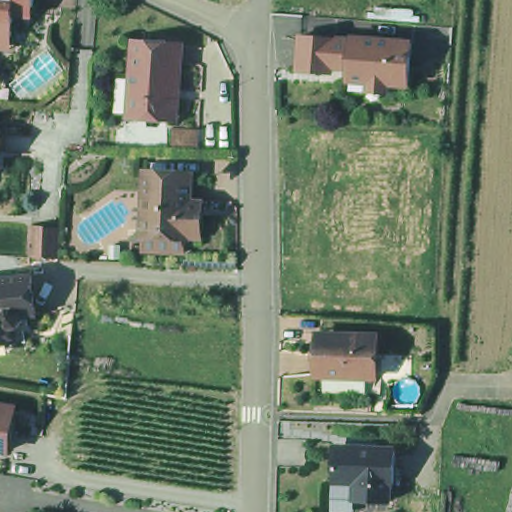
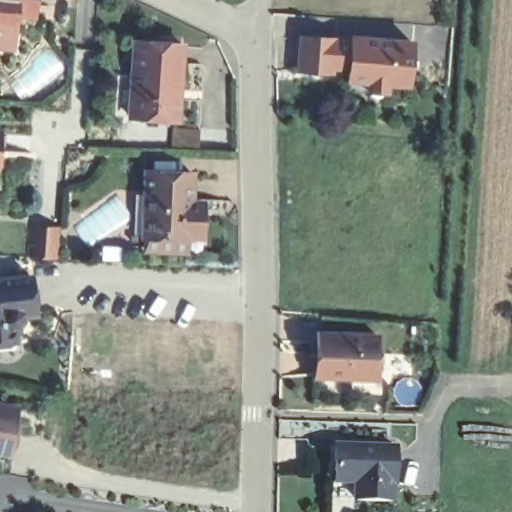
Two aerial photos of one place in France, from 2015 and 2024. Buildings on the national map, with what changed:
unchanged [(0,50),(0,0),(40,0),(39,9),(19,8),(18,39),(16,51),(0,50)]
unchanged [(413,88),(388,86),(387,93),(364,93),(363,84),(346,83),(346,73),(294,71),(296,32),(414,36),(413,88)]
unchanged [(141,35),(187,39),(186,67),(138,63),(141,35)]
unchanged [(176,113),(135,110),(125,109),(128,71),(138,72),(138,63),(186,67),(185,75),(183,113),(176,113)]
unchanged [(6,125),(5,148),(4,162),(0,162),(0,124),(6,125)]
unchanged [(146,234),(145,234),(146,217),(146,200),(146,184),(147,167),(193,167),(192,189),(192,196),(204,196),(204,205),(203,221),(203,230),(188,230),(189,236),(188,240),(146,239),(146,234)]
unchanged [(31,222),(60,224),(58,254),(29,252),(31,222)]
unchanged [(36,310),(24,311),(24,316),(19,321),(15,321),(15,336),(10,341),(0,343),(0,274),(31,270),(36,310)]
unchanged [(375,373),(316,371),(318,329),(376,331),(375,373)]
unchanged [(0,453),(0,400),(15,402),(10,454),(0,453)]
unchanged [(394,478),(390,478),(389,497),(356,495),(356,476),(334,475),(335,457),(338,457),(338,442),(396,444),(394,478)]

